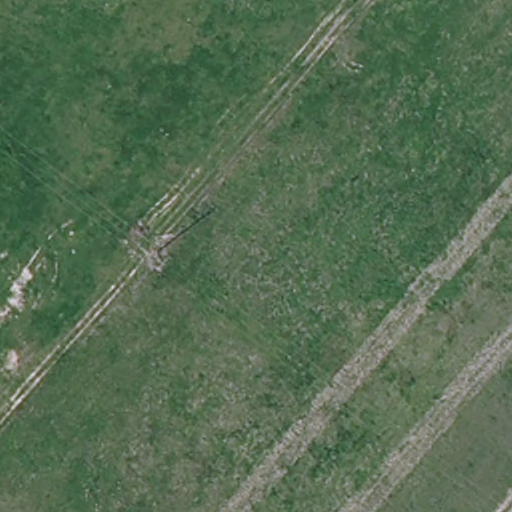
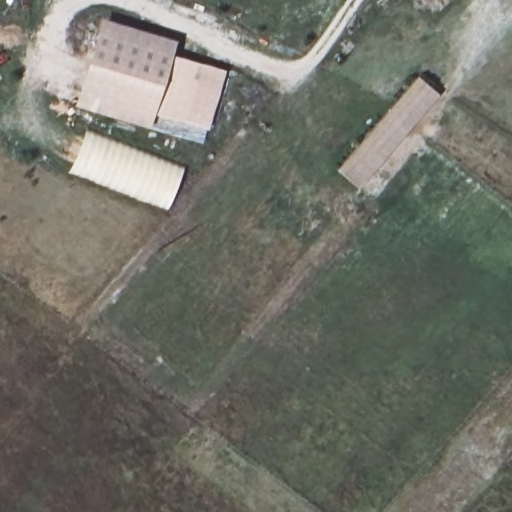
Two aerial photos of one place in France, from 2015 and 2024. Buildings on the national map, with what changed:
new [(71,106),(100,18),(176,40),(171,55),(225,70),(208,130),(153,115),(148,129),(71,106)]
new [(358,188),(336,170),(417,75),(439,93),(358,188)]
new [(183,167),(167,209),(69,172),(85,129),(183,167)]

